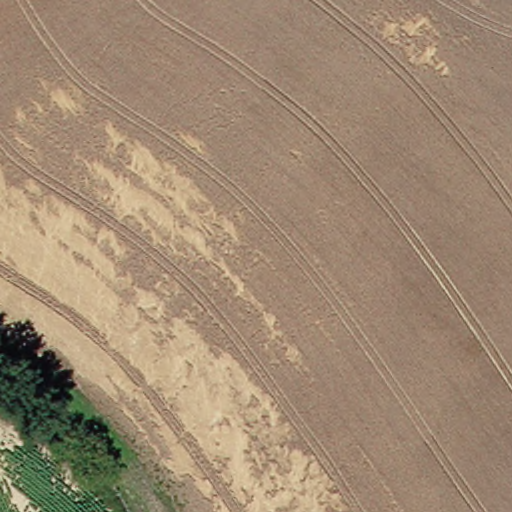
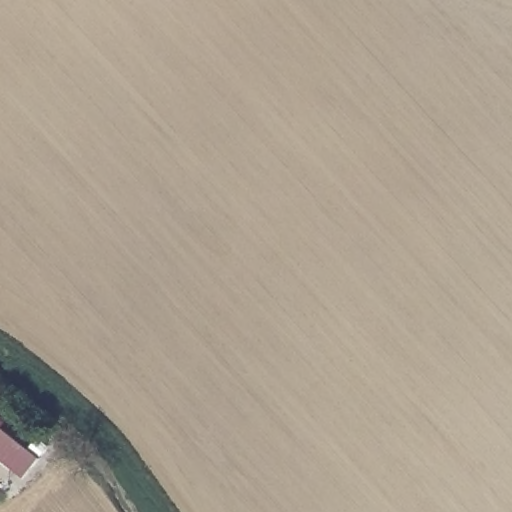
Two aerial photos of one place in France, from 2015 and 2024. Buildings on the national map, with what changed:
new [(0,457),(0,426),(41,456),(26,476),(0,457)]

